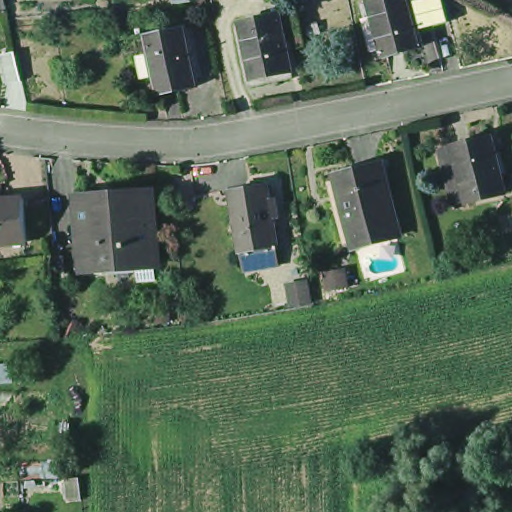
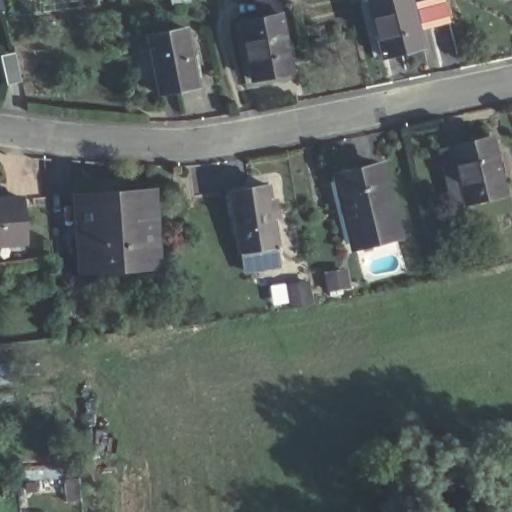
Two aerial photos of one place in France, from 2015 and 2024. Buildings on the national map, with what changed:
unchanged [(14,5),(0,8),(0,0),(13,0),(14,5)]
unchanged [(448,18),(418,26),(422,42),(383,52),(370,0),(411,0),(412,2),(420,0),(444,0),(448,18)]
unchanged [(280,15),(292,72),(252,81),(240,23),(280,15)]
unchanged [(185,35),(197,92),(157,100),(145,42),(185,35)]
unchanged [(496,137),(510,194),(470,204),(457,207),(443,151),(456,147),(496,137)]
unchanged [(360,251),(342,183),(385,172),(402,241),(360,251)]
unchanged [(245,272),(241,254),(240,254),(230,192),(267,186),(270,201),(275,200),(278,218),(272,219),(277,247),(280,266),(245,272)]
unchanged [(75,208),(114,205),(113,196),(146,192),(152,267),(80,272),(75,208)]
unchanged [(0,201),(22,200),(26,242),(0,245),(0,201)]

